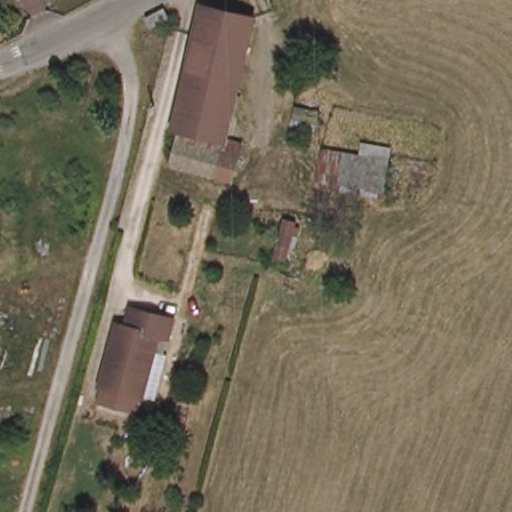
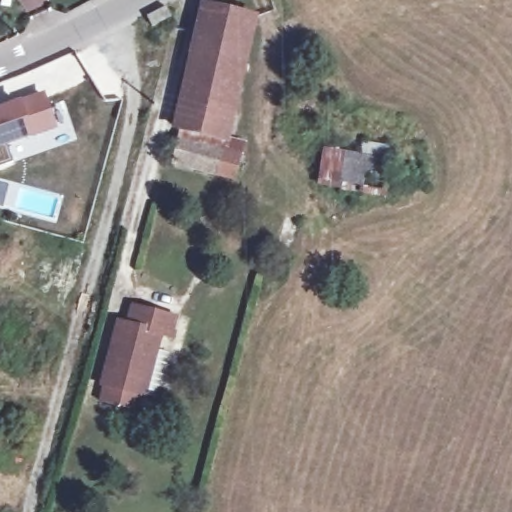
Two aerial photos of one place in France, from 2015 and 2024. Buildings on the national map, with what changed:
unchanged [(183,128),(178,127),(205,3),(255,13),(229,139),(226,149),(242,154),(235,177),(175,163),(182,139),(183,128)]
unchanged [(143,16),(161,6),(167,16),(149,26),(143,16)]
new [(45,91),(59,129),(35,138),(8,148),(14,164),(0,169),(0,106),(22,99),(45,91)]
unchanged [(362,153),(362,140),(393,144),(387,199),(317,188),(325,148),(362,153)]
unchanged [(105,382),(122,318),(132,321),(137,302),(179,313),(174,332),(164,329),(147,393),(144,392),(140,407),(104,397),(107,382),(105,382)]

